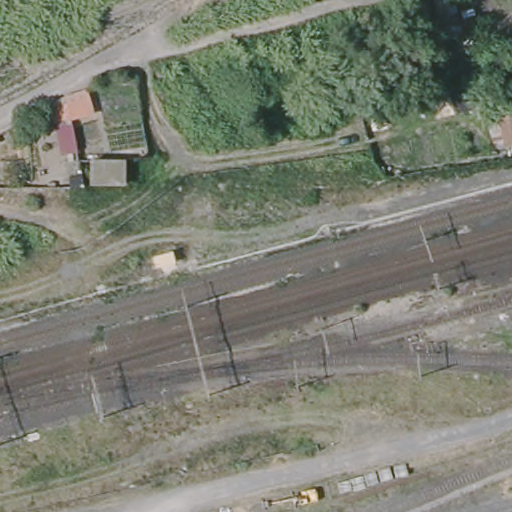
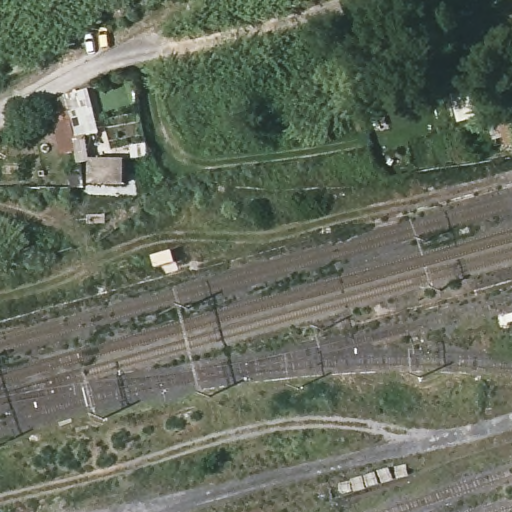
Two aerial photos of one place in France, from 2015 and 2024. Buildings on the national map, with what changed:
unchanged [(457,0),(472,0),(478,34),(443,44),(432,0),(456,0),(457,0)]
unchanged [(91,84),(98,100),(68,115),(78,156),(129,160),(127,187),(66,183),(48,107),(91,84)]
unchanged [(512,115),(512,148),(497,153),(489,121),(512,115)]

